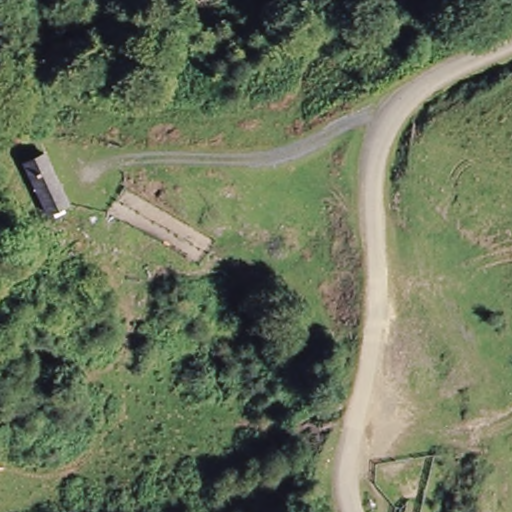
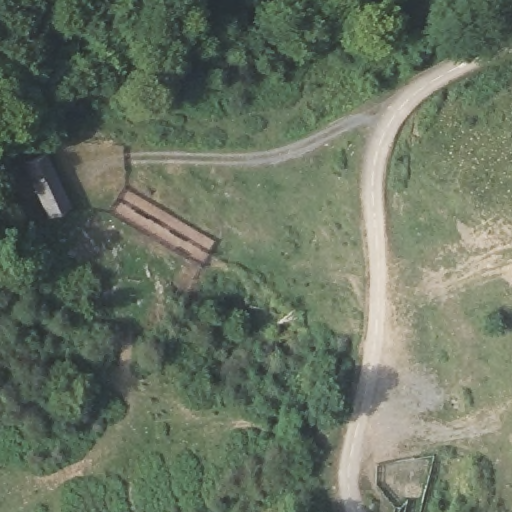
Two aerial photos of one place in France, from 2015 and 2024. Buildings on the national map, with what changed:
unchanged [(46,153),(70,211),(44,217),(18,166),(46,153)]

